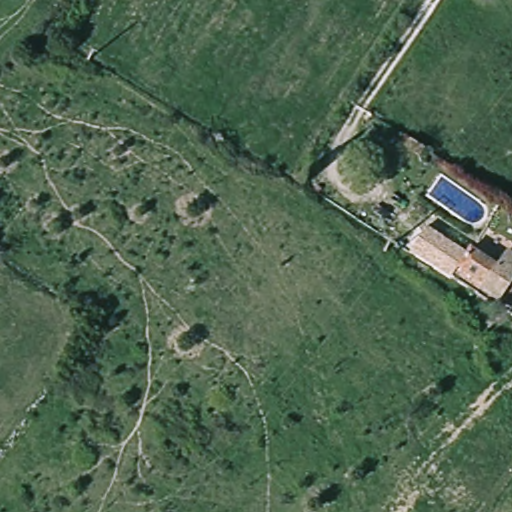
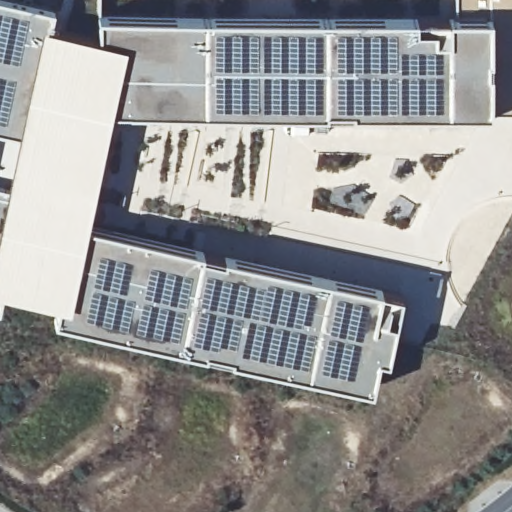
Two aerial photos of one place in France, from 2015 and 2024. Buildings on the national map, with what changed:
new [(54,320),(57,305),(2,293),(0,303),(0,0),(8,0),(53,10),(48,27),(99,38),(98,17),(455,16),(455,0),(512,0),(512,111),(490,111),(110,112),(87,226),(401,293),(387,356),(377,355),(370,387),(54,320)]
demolished [(480,291),(478,295),(477,295),(451,278),(457,269),(447,262),(455,251),(463,256),(467,251),(498,271),(512,280),(512,282),(497,301),(480,291)]

